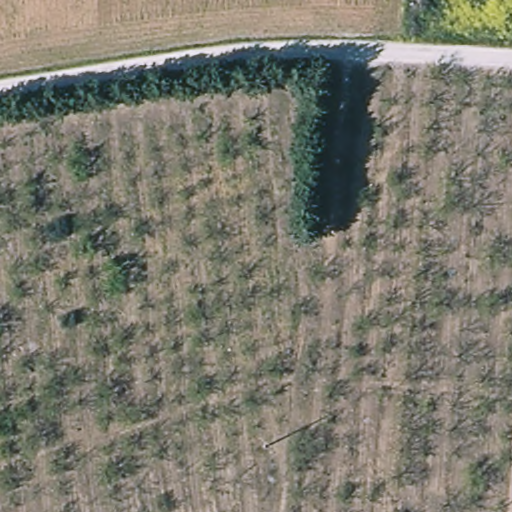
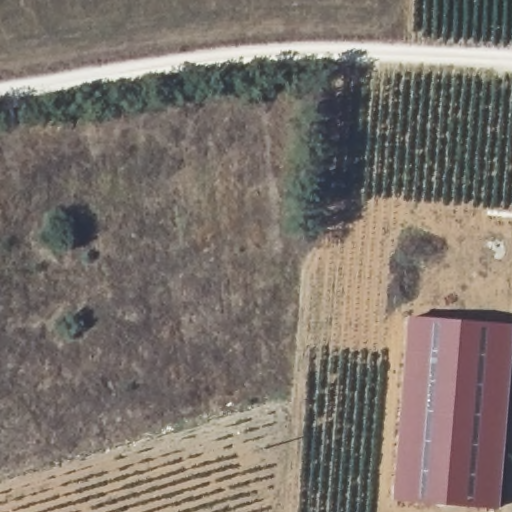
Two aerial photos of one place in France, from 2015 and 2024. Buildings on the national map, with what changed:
new [(501,508),(394,500),(409,315),(512,325),(512,365),(501,508)]

